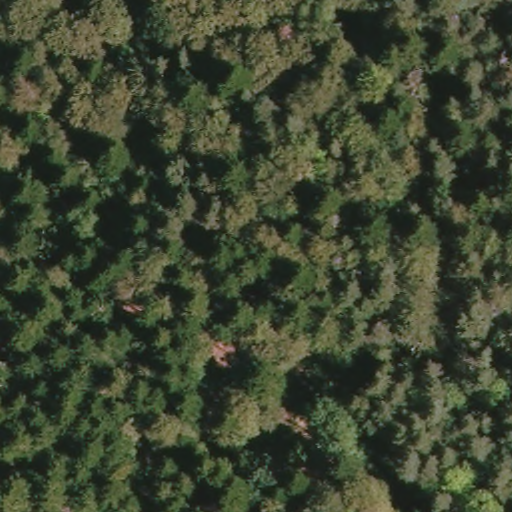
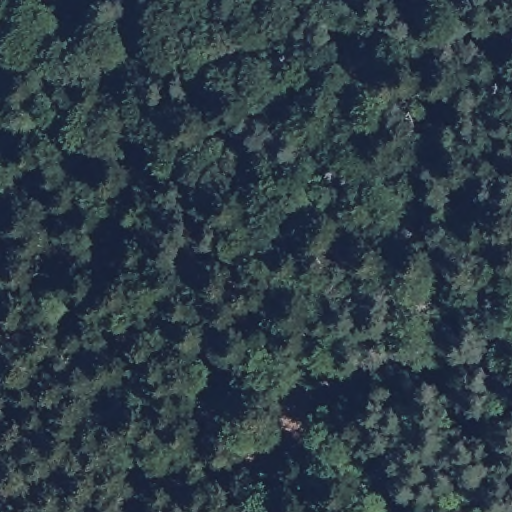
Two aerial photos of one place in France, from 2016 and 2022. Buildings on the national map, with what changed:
[]

